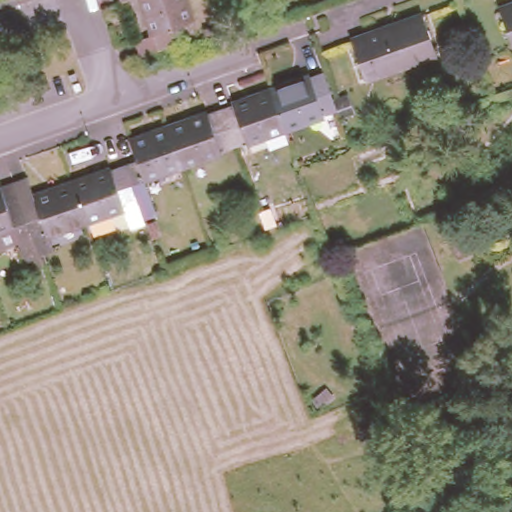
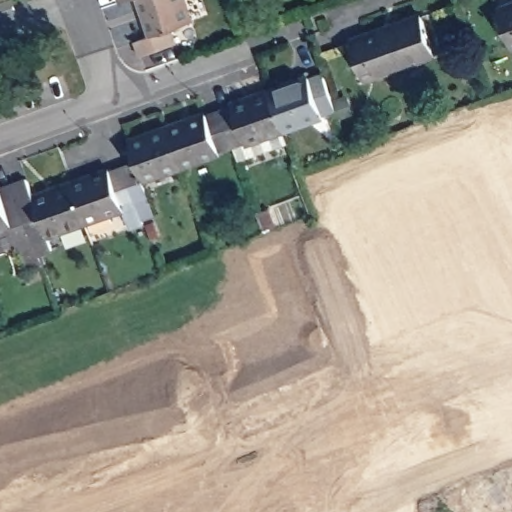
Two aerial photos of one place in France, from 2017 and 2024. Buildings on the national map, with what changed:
unchanged [(121,4),(120,0),(131,0),(121,4)]
unchanged [(191,24),(172,31),(176,44),(140,57),(135,44),(154,37),(141,0),(183,0),(191,24)]
unchanged [(512,42),(500,5),(512,0),(512,42)]
unchanged [(422,17),(435,54),(365,81),(350,42),(422,17)]
unchanged [(317,77),(330,117),(279,135),(265,96),(317,77)]
unchanged [(214,115),(265,96),(279,135),(227,154),(214,115)]
unchanged [(177,172),(164,133),(214,115),(227,154),(177,172)]
unchanged [(147,204),(134,208),(121,171),(132,166),(126,147),(164,133),(177,172),(140,185),(147,204)]
unchanged [(82,227),(68,189),(121,171),(134,208),(82,227)]
unchanged [(9,190),(24,185),(30,203),(68,189),(82,227),(30,246),(17,251),(0,256),(0,193),(9,190)]

